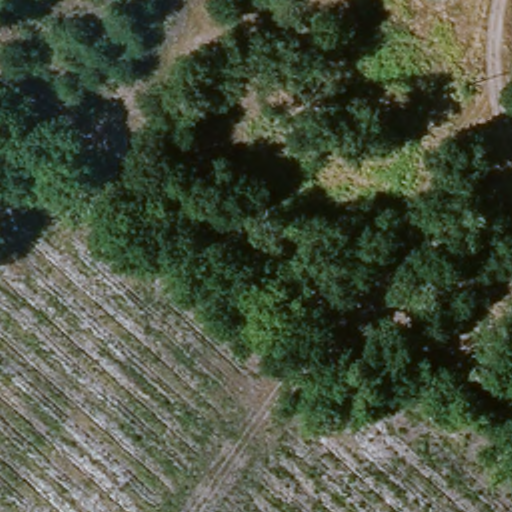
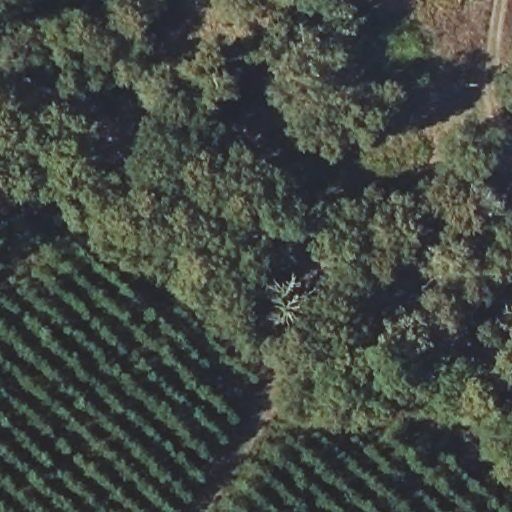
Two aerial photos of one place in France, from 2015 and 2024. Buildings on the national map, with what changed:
[]

